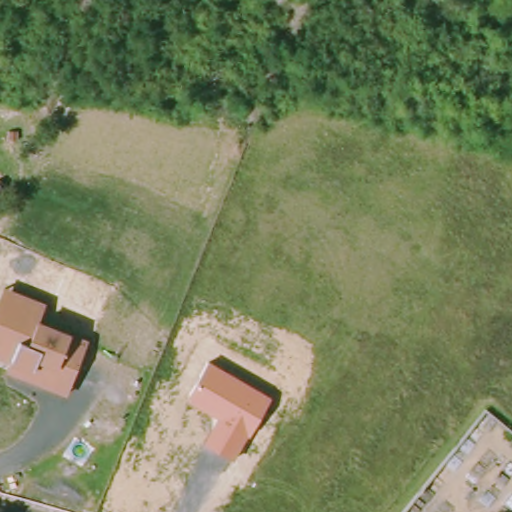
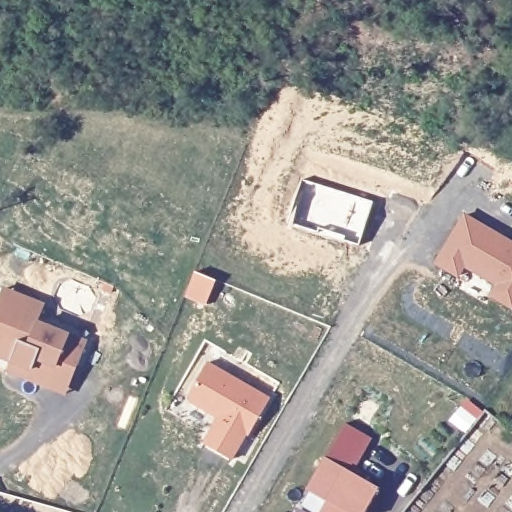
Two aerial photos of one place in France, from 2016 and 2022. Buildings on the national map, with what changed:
new [(489,297),(496,285),(465,269),(460,279),(434,265),(465,213),(512,241),(512,310),(489,297)]
new [(195,271),(215,279),(205,303),(185,295),(195,271)]
unchanged [(50,307),(42,325),(71,338),(91,346),(68,401),(8,376),(12,366),(0,362),(0,306),(6,290),(50,307)]
unchanged [(272,398),(250,438),(248,436),(233,461),(203,443),(218,419),(188,400),(208,362),(272,398)]
new [(346,424),(372,439),(352,472),(380,488),(366,512),(322,512),(328,501),(307,488),(346,424)]

